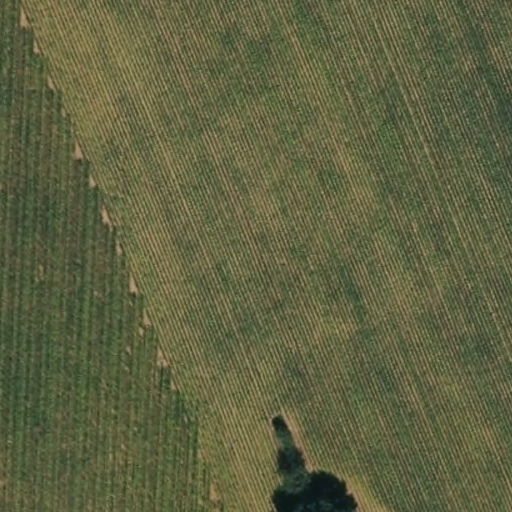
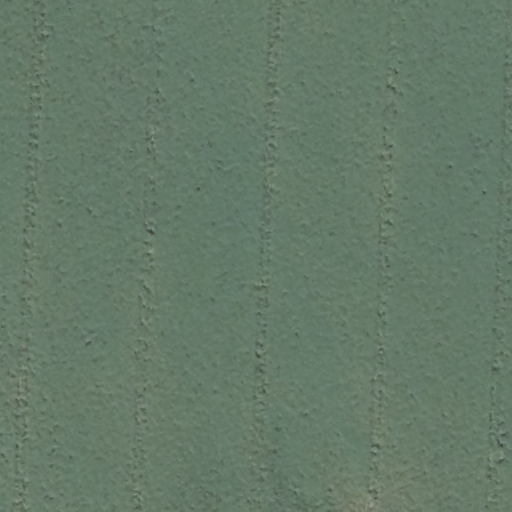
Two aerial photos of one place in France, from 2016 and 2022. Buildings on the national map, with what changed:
[]

